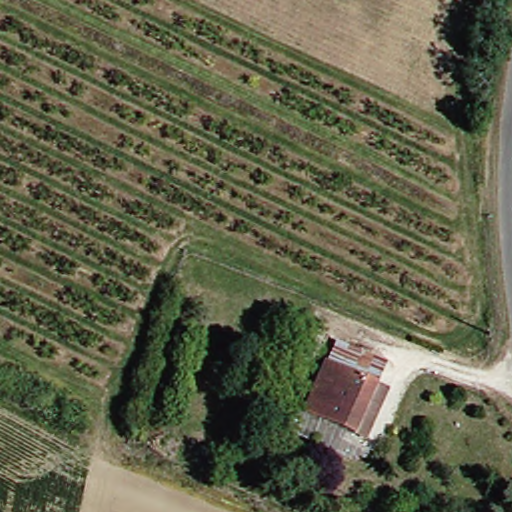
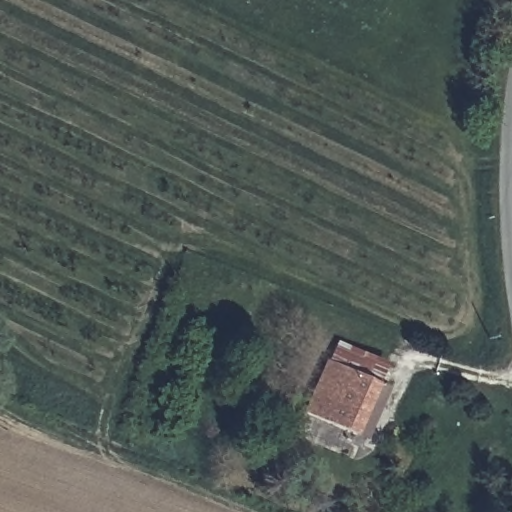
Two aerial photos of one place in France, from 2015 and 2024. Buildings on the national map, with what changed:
unchanged [(315,413),(311,421),(300,416),(303,408),(312,413),(338,360),(347,340),(396,362),(387,383),(397,387),(372,440),(362,435),(315,413)]

